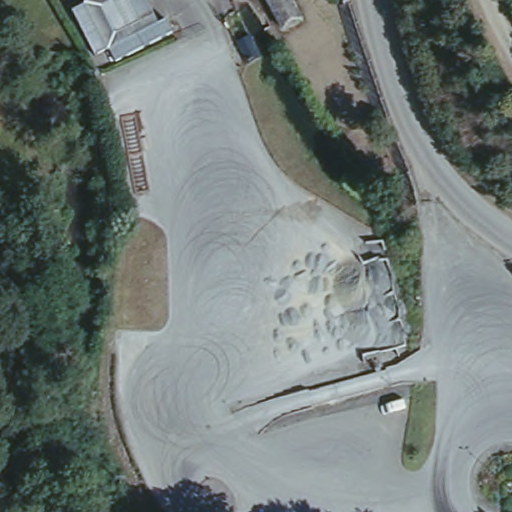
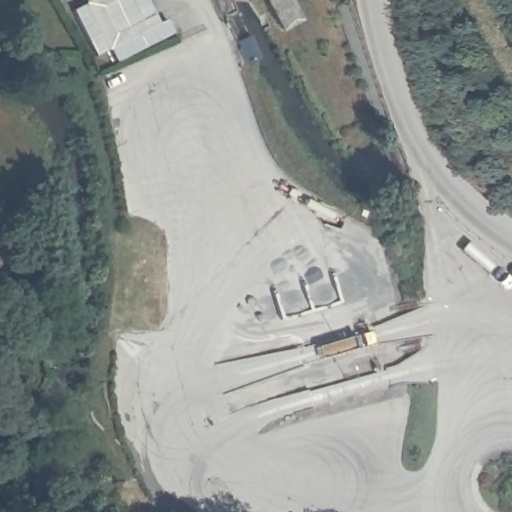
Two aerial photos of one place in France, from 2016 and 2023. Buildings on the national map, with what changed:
unchanged [(168,18),(175,32),(115,64),(107,51),(95,57),(73,10),(86,4),(84,0),(148,0),(159,23),(168,18)]
unchanged [(287,0),(296,20),(278,27),(263,0),(287,0)]
unchanged [(226,14),(239,9),(262,51),(250,57),(229,20),(226,14)]
unchanged [(0,264),(0,232),(1,232),(17,255),(0,264)]

